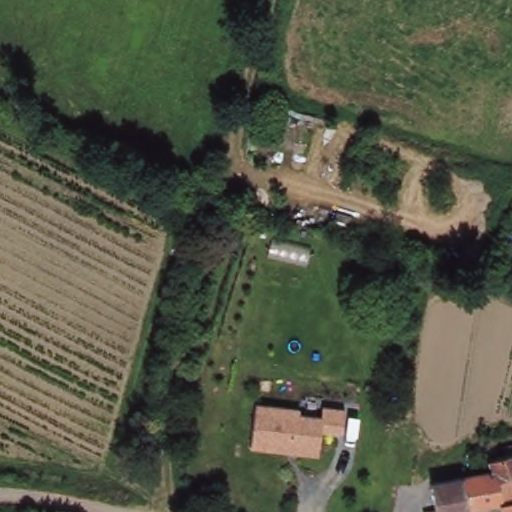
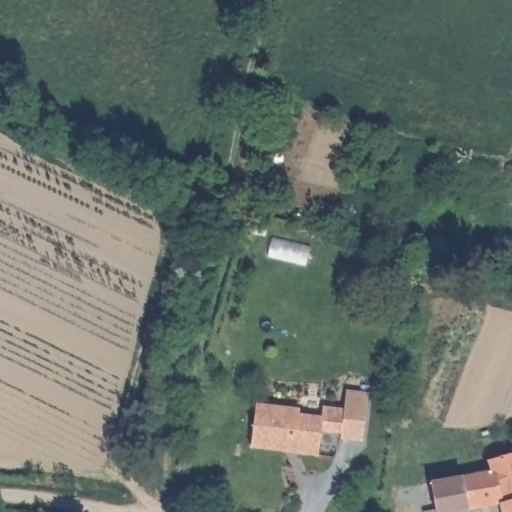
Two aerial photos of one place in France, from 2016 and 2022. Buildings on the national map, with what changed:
unchanged [(301,408),(300,415),(321,417),(323,406),(346,408),(344,436),(321,433),(318,456),(250,448),(256,403),(301,408)]
unchanged [(490,465),(512,460),(512,488),(511,488),(495,492),(497,508),(484,512),(436,512),(433,490),(491,477),(490,465)]
unchanged [(511,488),(512,488),(512,512),(498,512),(497,508),(495,492),(511,488)]

